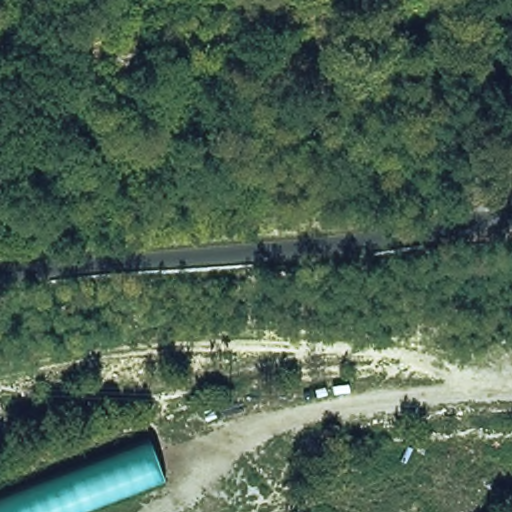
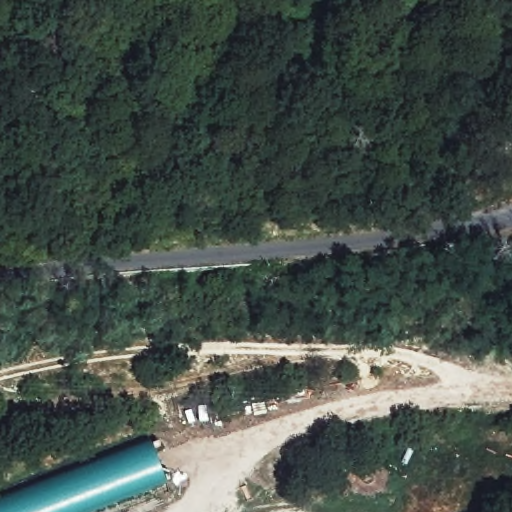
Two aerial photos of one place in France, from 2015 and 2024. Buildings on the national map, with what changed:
unchanged [(64,512),(0,512),(0,492),(147,432),(162,477),(64,512)]

